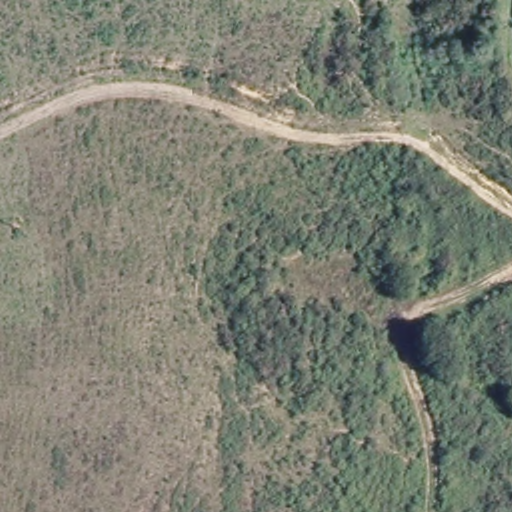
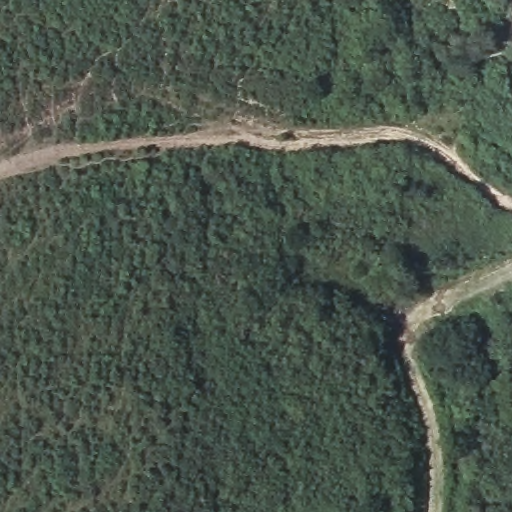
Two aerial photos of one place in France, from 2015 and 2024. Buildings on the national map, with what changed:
[]

